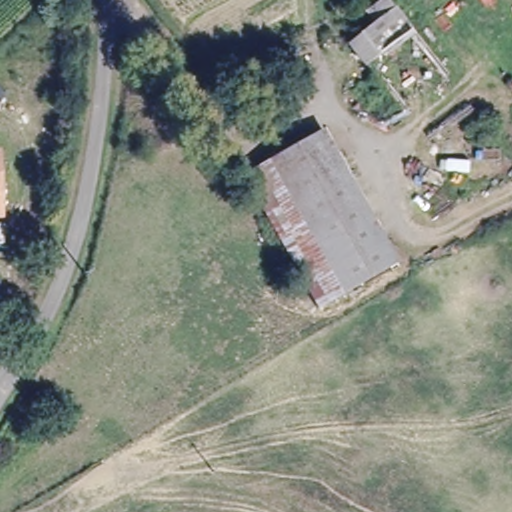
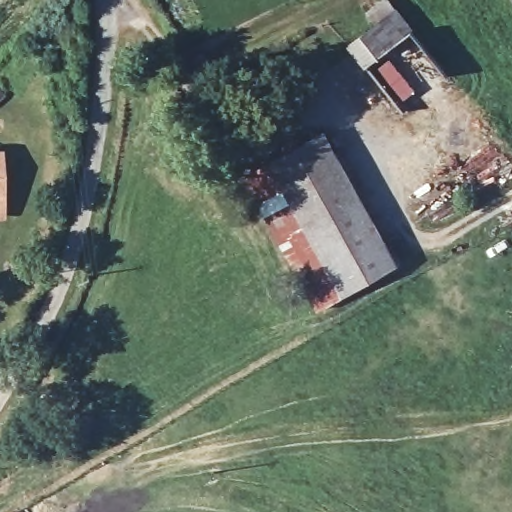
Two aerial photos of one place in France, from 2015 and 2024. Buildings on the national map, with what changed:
unchanged [(384,84),(329,18),(350,0),(390,0),(430,48),(384,84)]
unchanged [(323,135),(338,163),(285,208),(261,170),(323,135)]
unchanged [(4,147),(4,211),(0,211),(0,147),(4,147)]
unchanged [(443,159),(453,172),(441,182),(431,170),(443,159)]
unchanged [(394,263),(343,291),(285,208),(338,163),(394,263)]
unchanged [(321,303),(251,175),(261,170),(285,208),(343,291),(321,303)]

